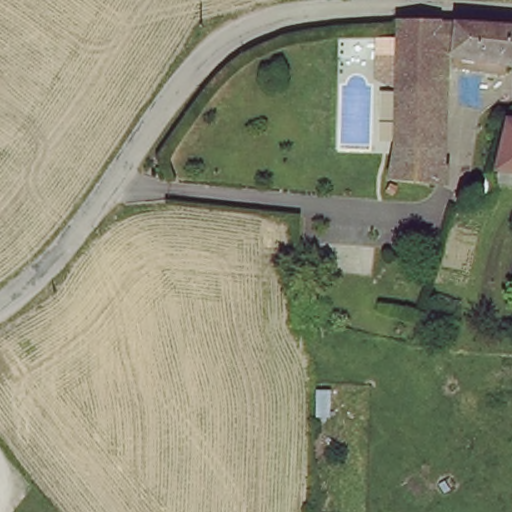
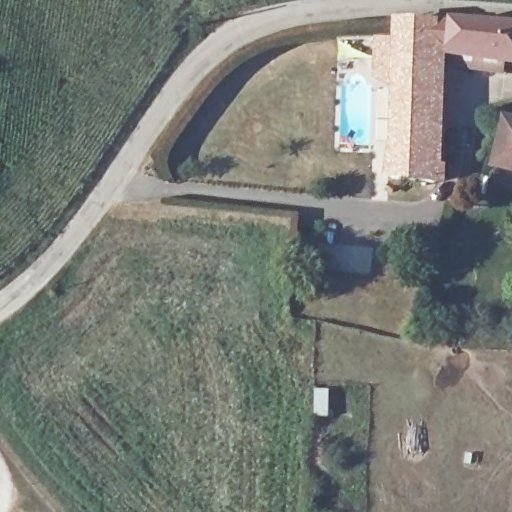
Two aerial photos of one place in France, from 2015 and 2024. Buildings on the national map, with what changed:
unchanged [(415,179),(393,179),(396,21),(512,22),(512,57),(502,56),(502,71),(455,70),(456,55),(439,55),(435,180),(415,179)]
unchanged [(512,168),(500,165),(510,118),(512,118),(512,168)]

